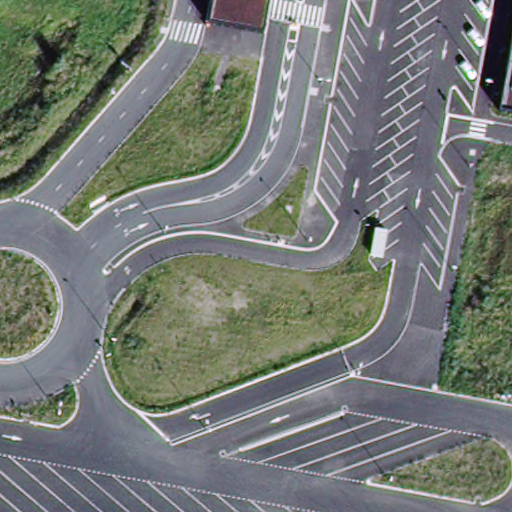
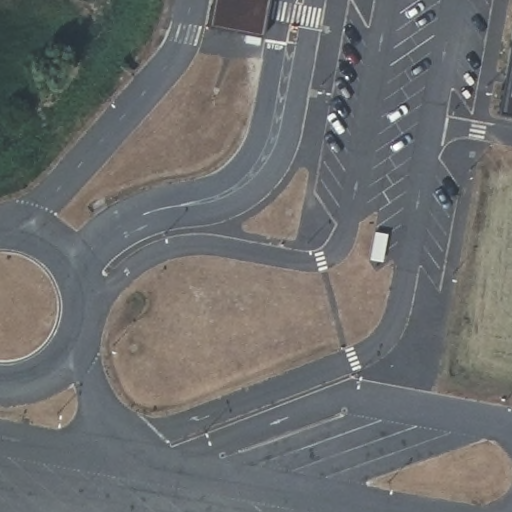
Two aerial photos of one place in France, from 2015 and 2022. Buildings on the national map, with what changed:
unchanged [(206,22),(210,0),(268,0),(262,31),(206,22)]
unchanged [(512,111),(496,107),(512,23),(512,111)]

